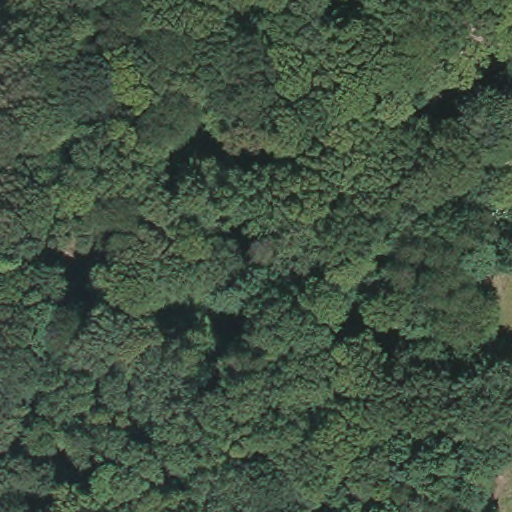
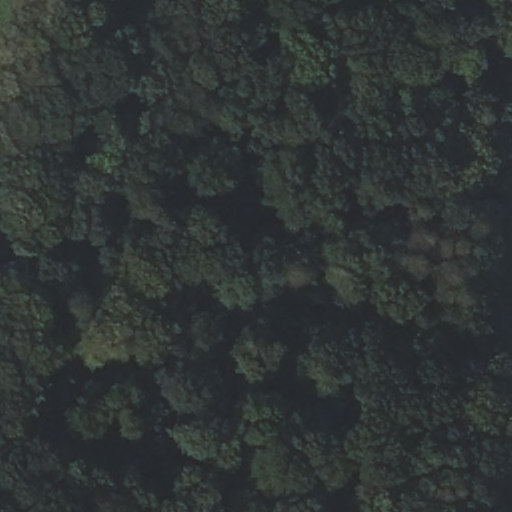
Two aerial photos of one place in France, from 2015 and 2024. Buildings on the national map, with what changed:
unchanged [(497,372),(512,374),(512,401),(495,397),(497,372)]

